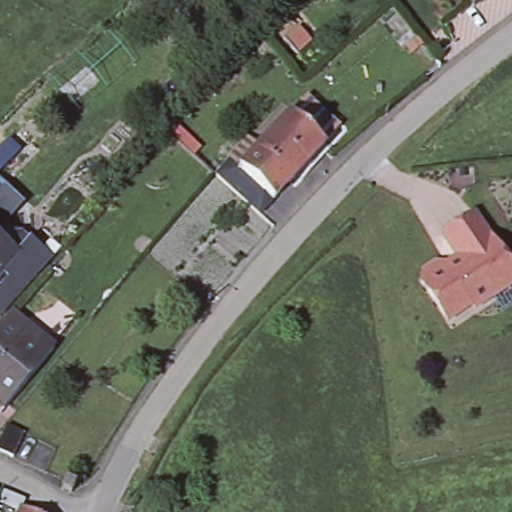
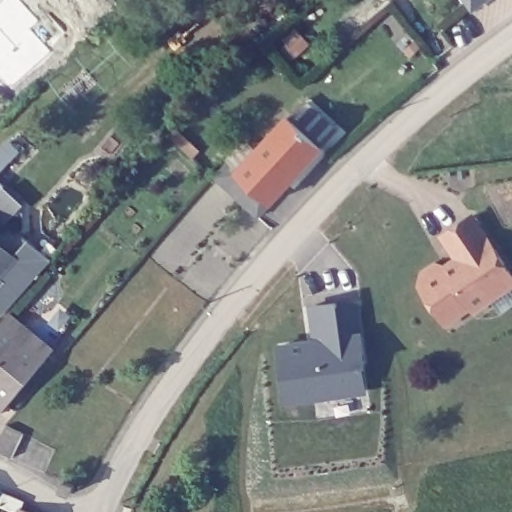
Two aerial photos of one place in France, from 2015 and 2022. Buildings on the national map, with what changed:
unchanged [(474,0),(487,0),(478,6),(474,0)]
unchanged [(50,75),(105,27),(132,62),(78,109),(50,75)]
unchanged [(306,100),(323,117),(316,124),(331,139),(280,194),(247,163),(299,107),(306,100)]
unchanged [(20,152),(0,171),(0,144),(6,138),(20,152)]
unchanged [(237,154),(247,163),(280,194),(266,209),(224,169),(237,154)]
unchanged [(23,203),(0,226),(0,176),(23,203)]
unchanged [(475,308),(472,304),(448,320),(420,282),(423,270),(436,262),(446,265),(458,256),(443,234),(472,214),(512,272),(512,284),(492,297),(475,308)]
unchanged [(16,254),(0,272),(0,240),(16,254)]
unchanged [(20,257),(38,275),(10,308),(8,307),(0,318),(0,279),(20,257)]
new [(279,343),(312,338),(310,304),(337,301),(337,305),(358,302),(360,333),(367,392),(285,402),(279,343)]
unchanged [(10,311),(52,348),(1,409),(0,410),(0,323),(10,311)]
unchanged [(2,425),(5,422),(21,430),(12,455),(0,450),(0,431),(2,425)]
unchanged [(0,503),(0,497),(2,490),(24,499),(25,500),(22,507),(33,512),(18,512),(18,511),(0,503)]

